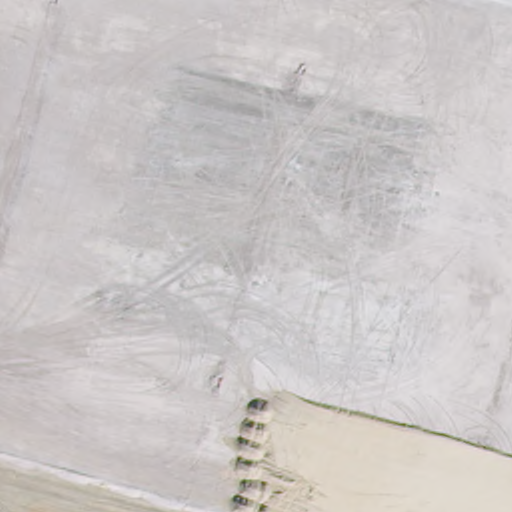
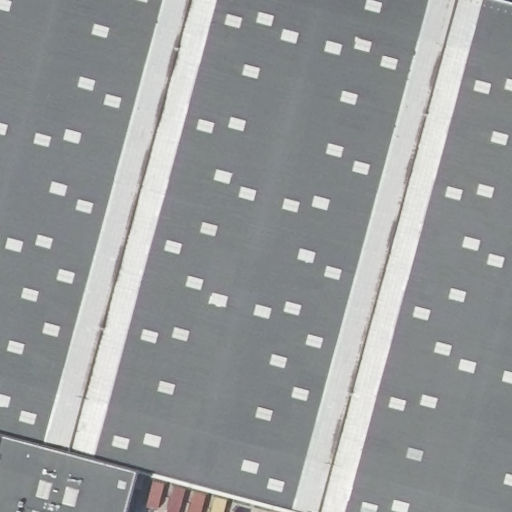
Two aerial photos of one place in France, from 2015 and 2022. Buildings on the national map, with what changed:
new [(512,512),(298,512),(136,468),(122,512),(0,512),(0,0),(498,0),(512,4),(512,512)]

